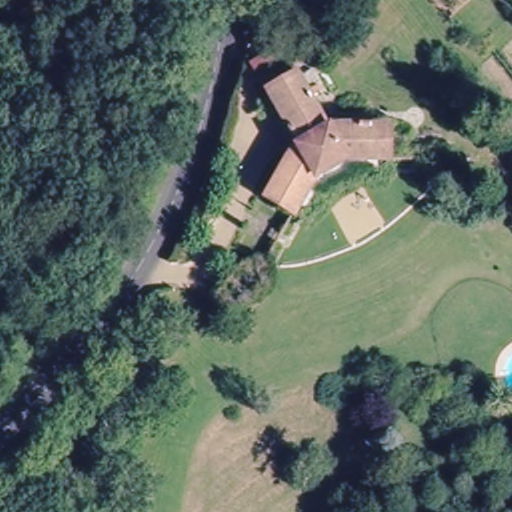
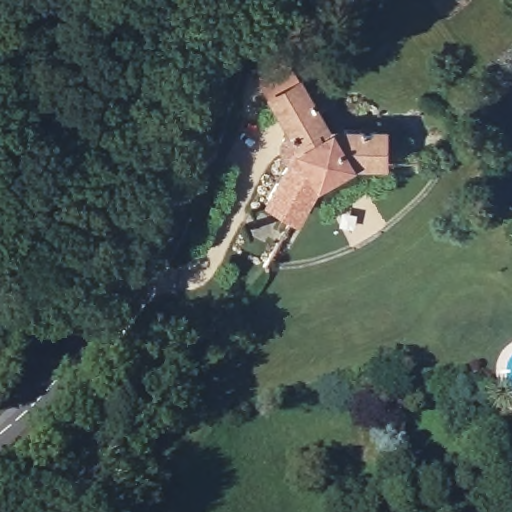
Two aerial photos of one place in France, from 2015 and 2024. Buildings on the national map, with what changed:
unchanged [(325,187),(314,171),(312,172),(292,204),(265,189),(285,152),(279,149),(277,131),(285,125),(252,62),(278,48),(301,85),(312,79),(317,87),(307,92),(311,99),(307,101),(323,125),(355,124),(356,117),(372,117),(372,122),(387,122),(387,150),(344,154),(353,170),(325,187)]

